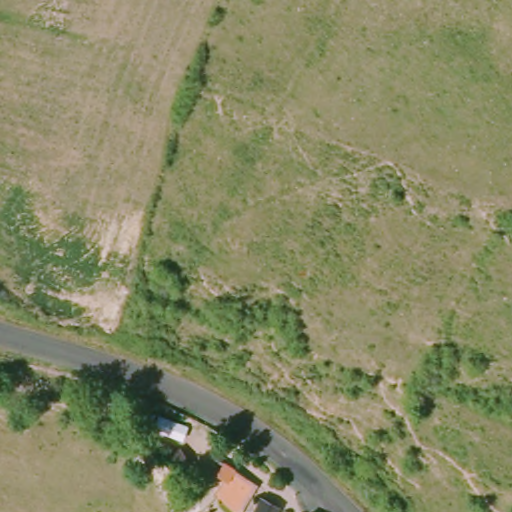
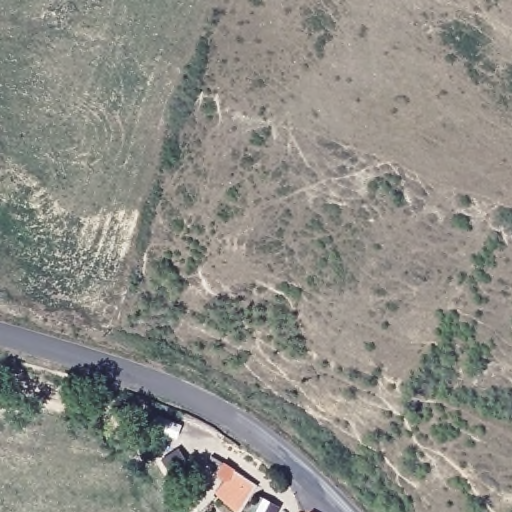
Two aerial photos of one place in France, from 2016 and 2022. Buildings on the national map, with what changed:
unchanged [(218,495),(227,485),(221,477),(228,467),(256,486),(236,511),(218,495)]

